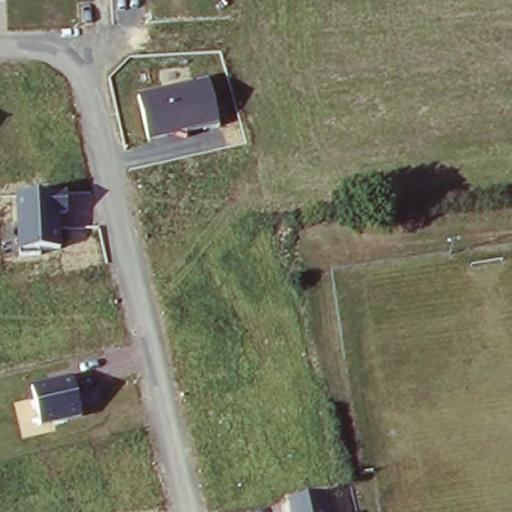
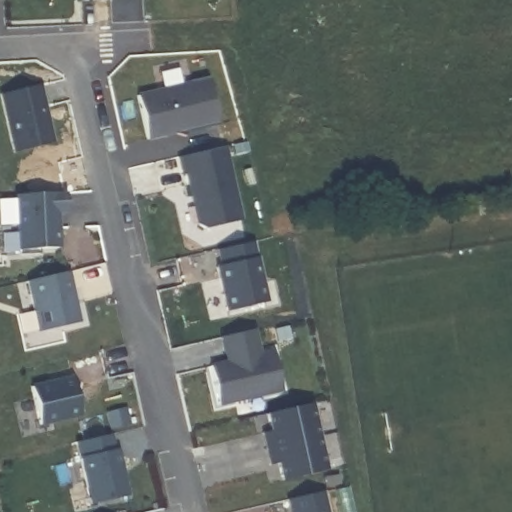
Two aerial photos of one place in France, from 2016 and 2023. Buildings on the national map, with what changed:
unchanged [(220,124),(148,140),(138,96),(209,80),(220,124)]
new [(0,94),(40,85),(54,142),(15,151),(0,94)]
new [(224,147),(242,220),(205,227),(200,224),(188,173),(184,175),(179,158),(224,147)]
unchanged [(69,219),(58,219),(60,250),(17,253),(15,195),(67,191),(69,219)]
new [(217,266),(222,265),(219,250),(254,241),(268,301),(228,310),(217,266)]
new [(28,280),(67,270),(80,323),(39,331),(28,280)]
new [(210,365),(228,361),(223,337),(253,330),(260,354),(274,351),(283,390),(220,405),(210,365)]
unchanged [(39,428),(31,387),(74,377),(84,417),(39,428)]
new [(280,463),(271,465),(264,432),(272,430),(268,413),(310,404),(326,470),(284,480),(280,463)]
new [(111,435),(113,450),(117,450),(127,495),(91,504),(77,442),(111,435)]
unchanged [(331,512),(288,512),(286,501),(326,491),(331,512)]

